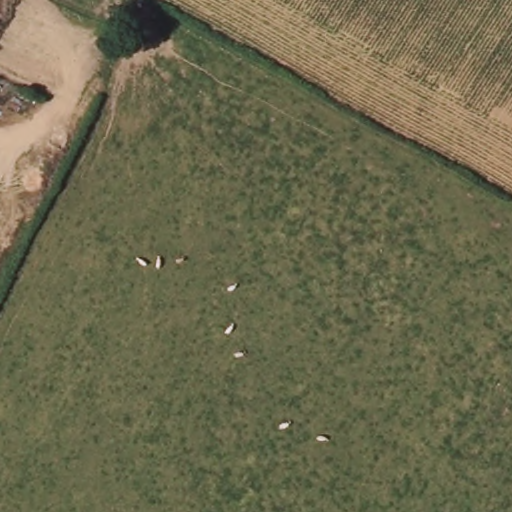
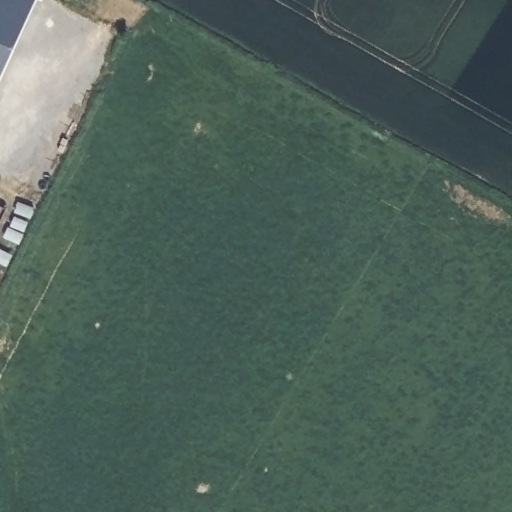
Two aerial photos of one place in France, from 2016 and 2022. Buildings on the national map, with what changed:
new [(0,0),(36,0),(0,82),(0,0)]

